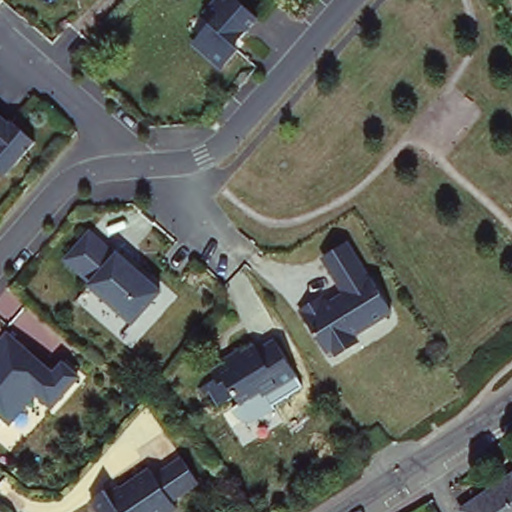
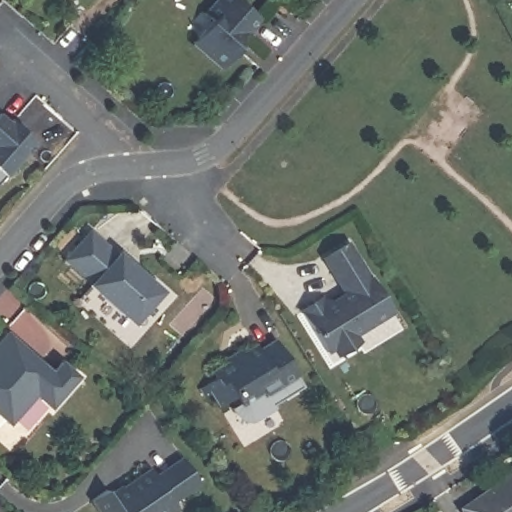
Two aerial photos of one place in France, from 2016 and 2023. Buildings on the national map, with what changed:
unchanged [(214,18),(205,10),(214,0),(243,0),(260,15),(235,43),(239,46),(223,65),(194,40),(214,18)]
unchanged [(9,117),(11,115),(35,136),(4,170),(0,166),(0,110),(9,117)]
unchanged [(89,231),(114,253),(159,292),(132,325),(86,284),(63,263),(89,231)]
unchanged [(329,293),(333,298),(340,294),(320,259),(347,242),(368,270),(371,269),(398,310),(359,336),(365,343),(335,359),(301,309),(329,293)]
unchanged [(52,372),(62,361),(79,375),(51,407),(36,393),(10,423),(0,414),(0,340),(6,332),(52,372)]
unchanged [(219,381),(214,374),(256,345),(260,350),(275,339),(300,375),(283,386),(286,391),(270,402),(263,392),(244,406),(239,398),(222,409),(209,387),(219,381)]
unchanged [(371,453),(361,438),(378,427),(388,442),(371,453)]
unchanged [(174,496),(179,504),(166,512),(105,512),(94,495),(108,486),(112,492),(152,464),(156,471),(184,453),(200,478),(174,496)]
unchanged [(512,479),(512,512),(466,512),(465,511),(512,479)]

